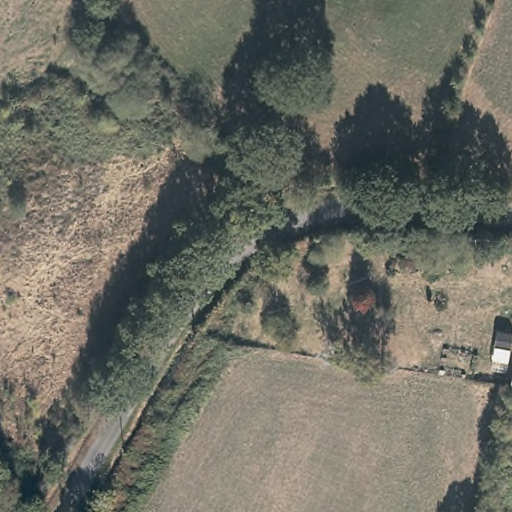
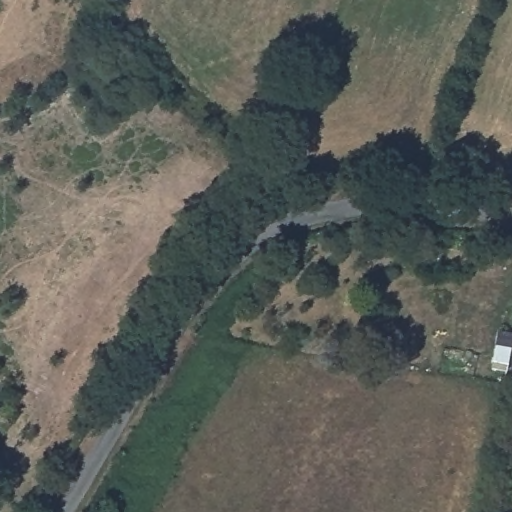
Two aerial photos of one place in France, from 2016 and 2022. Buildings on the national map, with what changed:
[]

